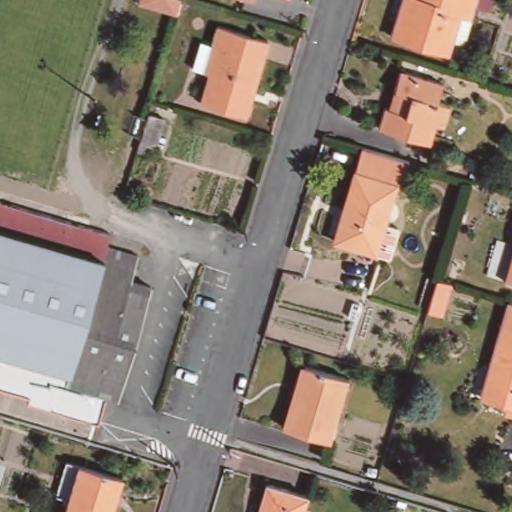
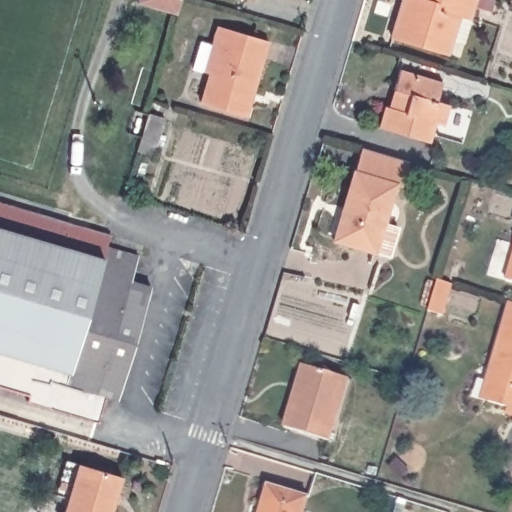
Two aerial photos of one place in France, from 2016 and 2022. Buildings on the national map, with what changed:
unchanged [(137,3),(138,0),(181,0),(177,16),(137,3)]
unchanged [(457,39),(454,51),(400,35),(410,0),(479,0),(467,42),(457,39)]
unchanged [(243,113),(200,100),(210,73),(192,67),(202,39),(209,41),(215,22),(274,41),(263,77),(253,116),(243,113)]
unchanged [(383,103),(390,105),(401,66),(442,79),(438,96),(449,99),(442,123),(433,120),(428,138),(377,124),(383,103)]
unchanged [(163,115),(180,120),(170,148),(155,143),(163,115)]
unchanged [(389,259),(376,255),(335,243),(360,150),(408,164),(400,189),(395,188),(383,228),(396,232),(389,259)]
unchanged [(50,373),(15,363),(20,347),(0,341),(0,200),(112,233),(108,248),(138,257),(131,281),(151,287),(119,390),(68,376),(51,371),(50,373)]
unchanged [(512,277),(510,277),(512,269),(512,277)]
unchanged [(482,394),(492,359),(510,299),(512,299),(512,402),(492,397),(482,394)]
unchanged [(303,363),(347,377),(330,439),(285,426),(303,363)]
unchanged [(512,406),(512,413),(510,412),(512,406)]
unchanged [(80,461),(121,473),(109,512),(65,512),(69,498),(80,461)]
unchanged [(272,476),(313,488),(306,512),(262,512),(272,476)]

